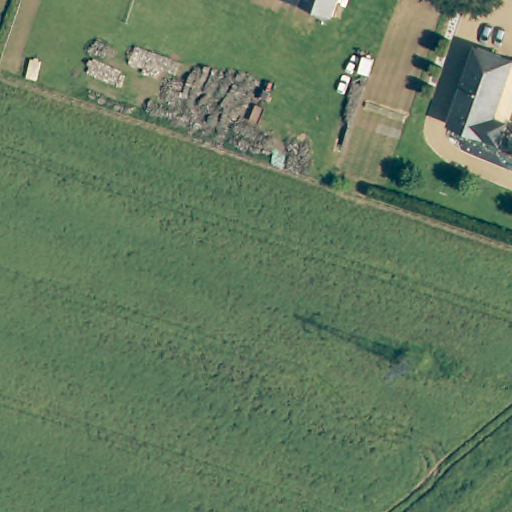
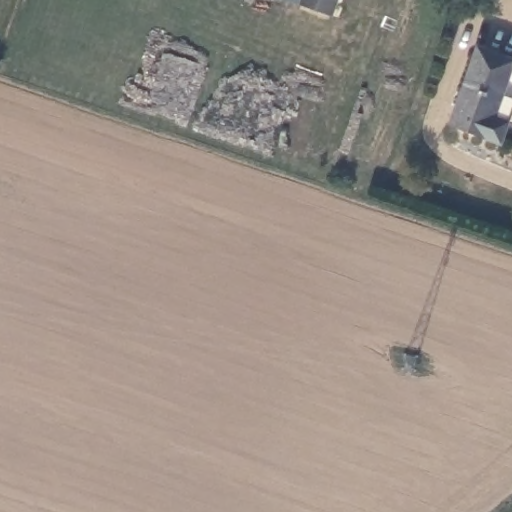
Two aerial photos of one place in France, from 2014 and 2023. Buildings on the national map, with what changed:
unchanged [(305,0),(340,0),(334,18),(303,8),(305,0)]
unchanged [(447,116),(474,41),(512,55),(490,112),(504,116),(497,137),(446,120),(447,116)]

